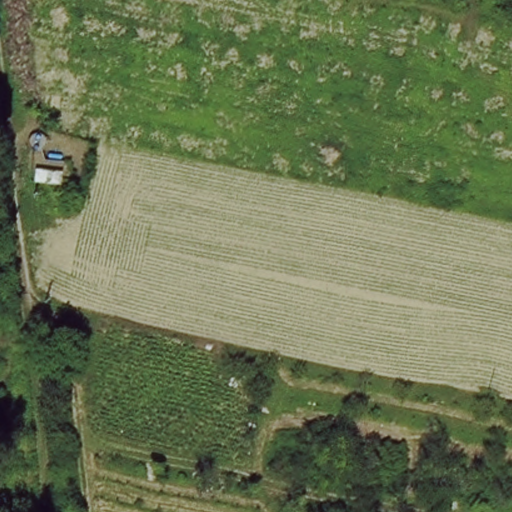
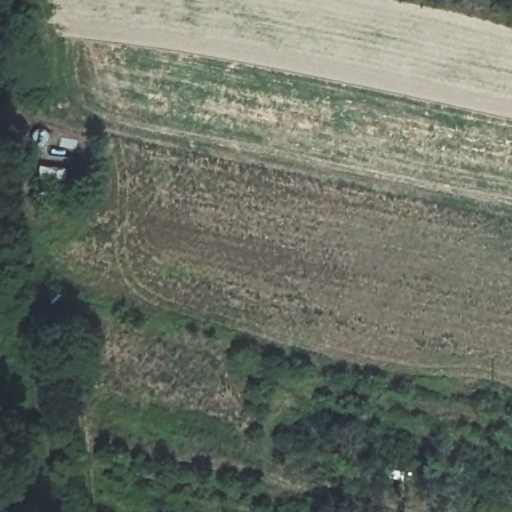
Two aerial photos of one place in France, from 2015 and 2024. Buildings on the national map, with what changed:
unchanged [(67,170),(65,182),(36,177),(37,163),(67,170)]

